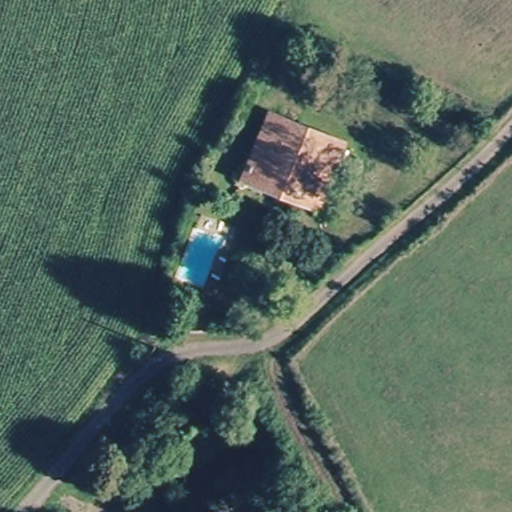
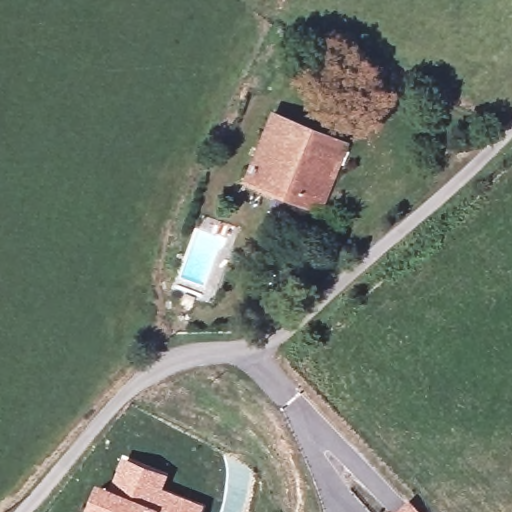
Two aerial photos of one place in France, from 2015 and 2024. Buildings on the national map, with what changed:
unchanged [(303,196),(249,179),(272,119),(322,135),(303,196)]
unchanged [(323,217),(298,209),(303,196),(322,135),(348,144),(323,217)]
unchanged [(216,321),(204,315),(206,310),(210,300),(224,305),(218,319),(216,321)]
new [(168,475),(164,487),(204,505),(201,512),(88,512),(86,512),(99,482),(111,487),(124,456),(168,475)]
new [(409,508),(413,512),(405,512),(409,508)]

